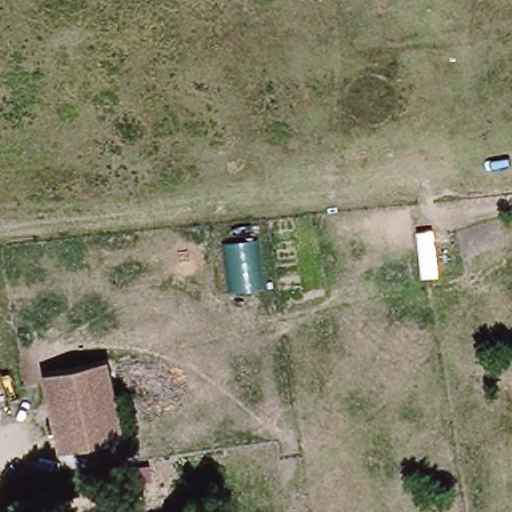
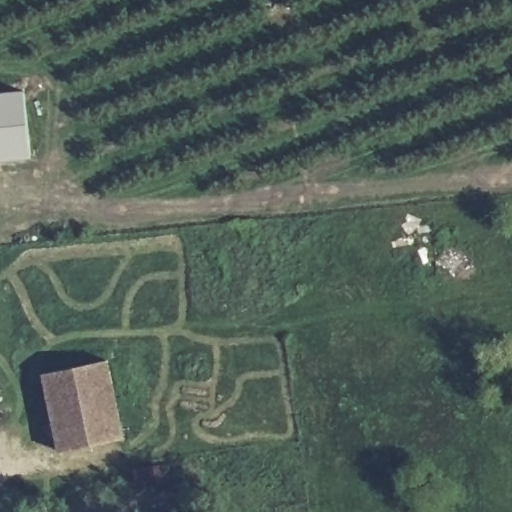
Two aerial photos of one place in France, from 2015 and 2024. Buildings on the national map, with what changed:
new [(32,158),(0,162),(0,93),(24,90),(32,158)]
new [(257,238),(262,289),(226,294),(221,242),(257,238)]
unchanged [(128,436),(66,449),(48,370),(112,357),(128,436)]

